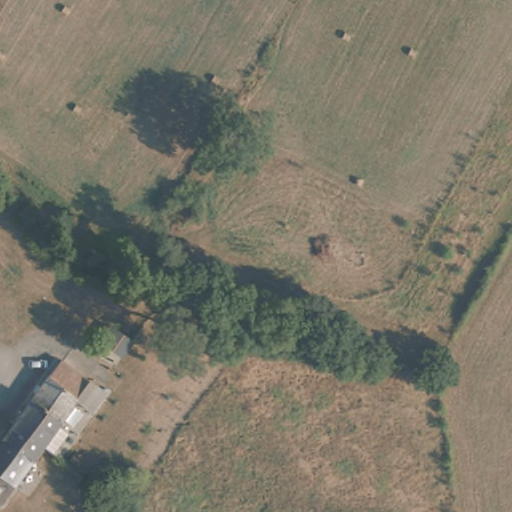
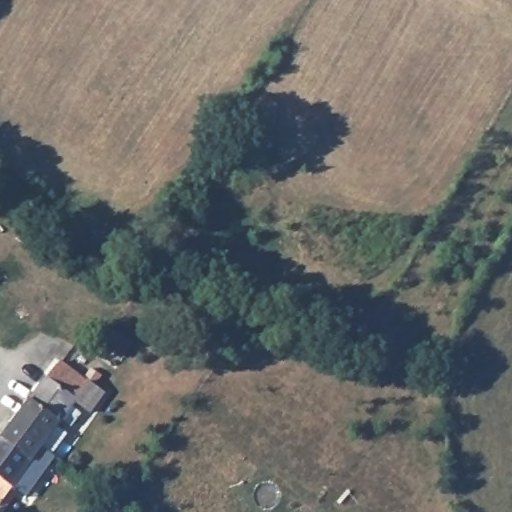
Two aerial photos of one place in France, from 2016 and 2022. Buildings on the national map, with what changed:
unchanged [(107,392),(93,411),(85,422),(69,412),(2,503),(0,501),(0,447),(6,440),(3,439),(61,360),(107,392)]

